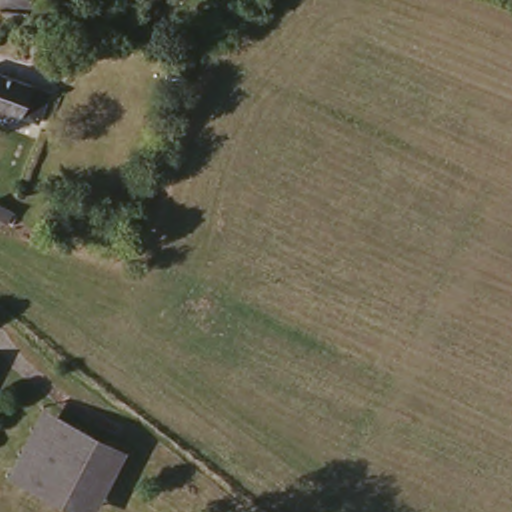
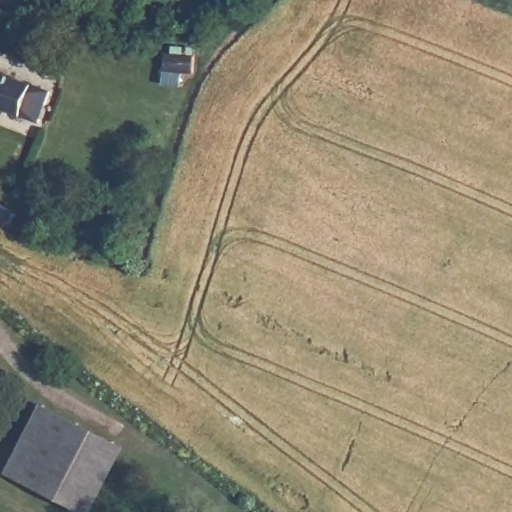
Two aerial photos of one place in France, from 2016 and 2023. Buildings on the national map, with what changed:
unchanged [(50,88),(38,122),(0,108),(0,71),(50,88)]
unchanged [(94,512),(69,512),(7,478),(41,409),(125,453),(94,512)]

